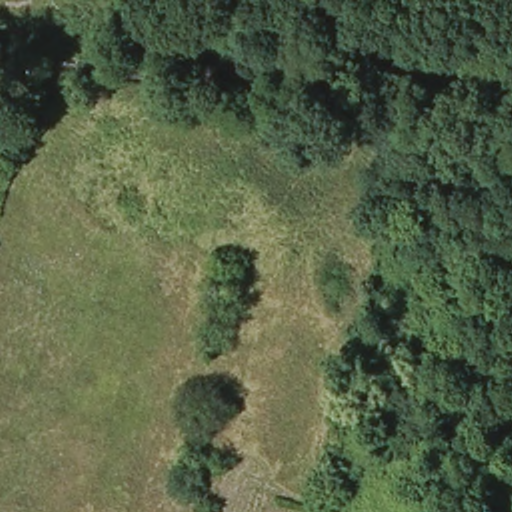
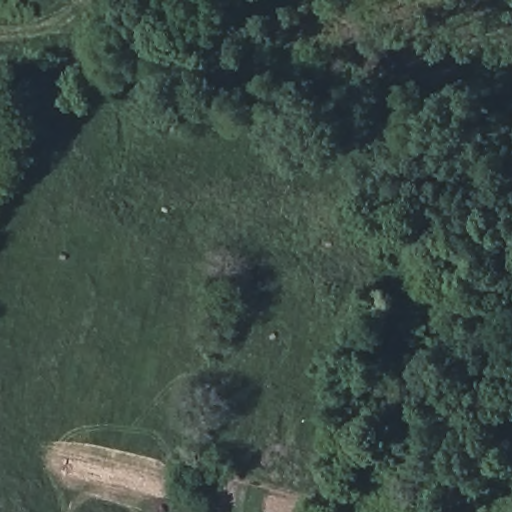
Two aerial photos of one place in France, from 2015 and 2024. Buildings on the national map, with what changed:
[]

